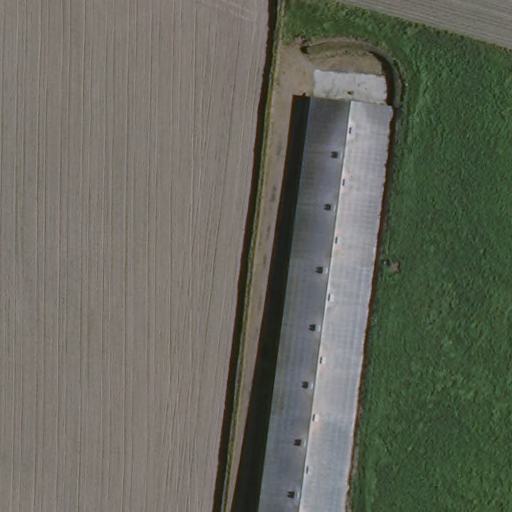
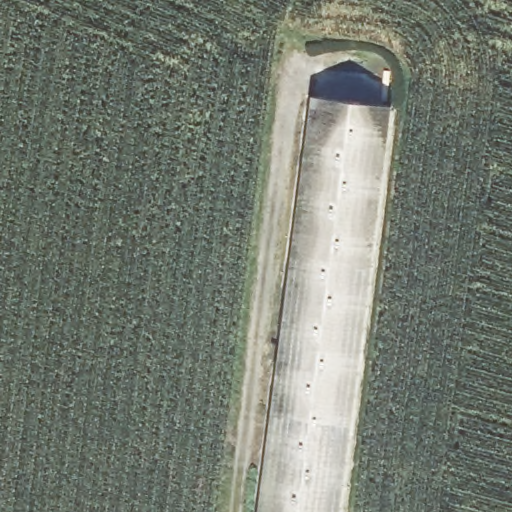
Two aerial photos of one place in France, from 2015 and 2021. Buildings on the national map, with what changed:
unchanged [(353,512),(276,512),(309,84),(385,90),(353,512)]

